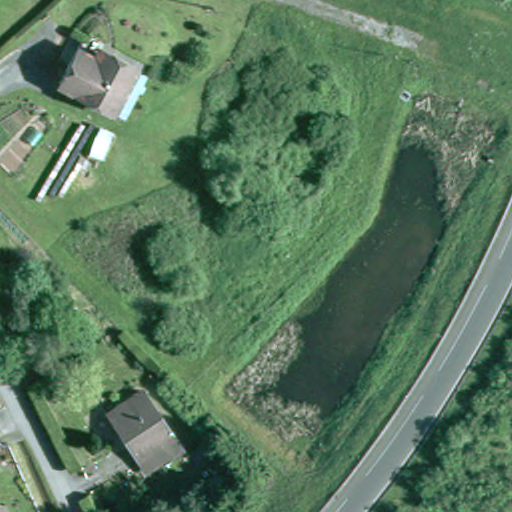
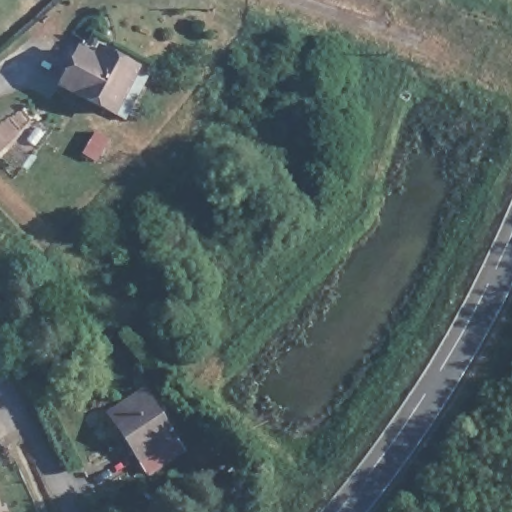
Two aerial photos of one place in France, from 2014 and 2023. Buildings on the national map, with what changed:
unchanged [(71,65),(60,59),(71,35),(137,70),(112,116),(60,85),(71,65)]
unchanged [(177,454),(143,475),(103,410),(138,389),(177,454)]

